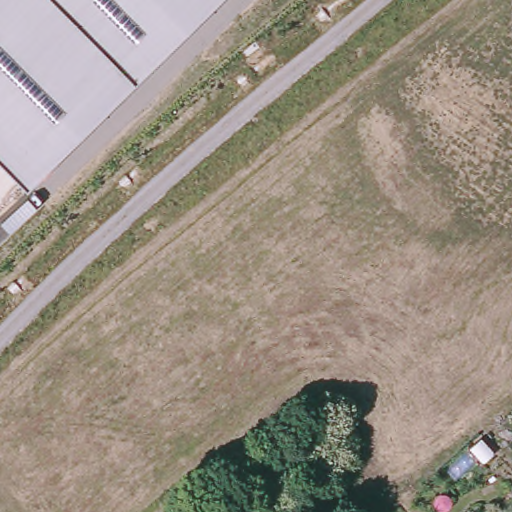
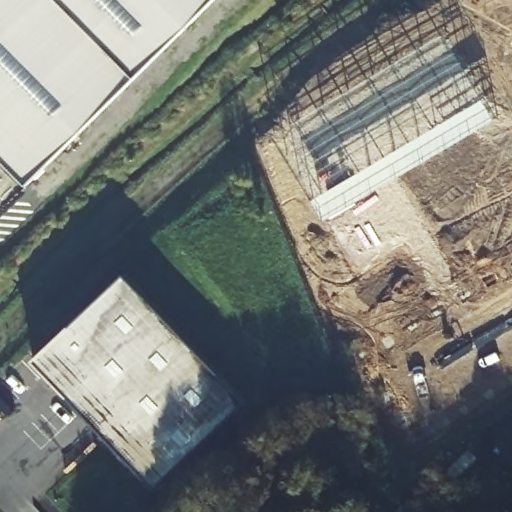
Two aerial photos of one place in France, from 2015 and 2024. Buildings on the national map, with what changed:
unchanged [(31,184),(0,153),(0,0),(215,0),(31,184)]
new [(248,400),(155,488),(34,359),(126,275),(248,400)]

